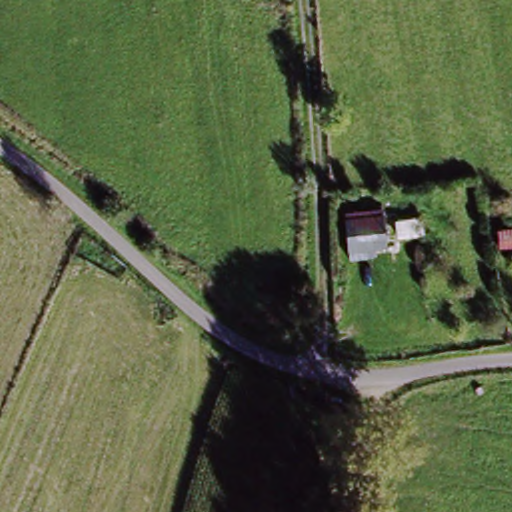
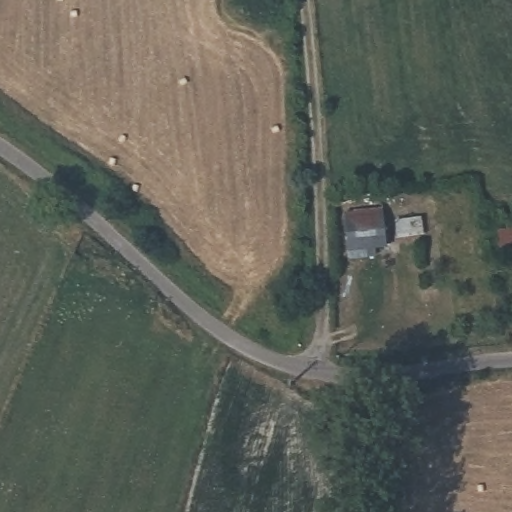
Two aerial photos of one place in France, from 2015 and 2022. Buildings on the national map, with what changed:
unchanged [(380,212),(386,253),(346,258),(340,217),(380,212)]

